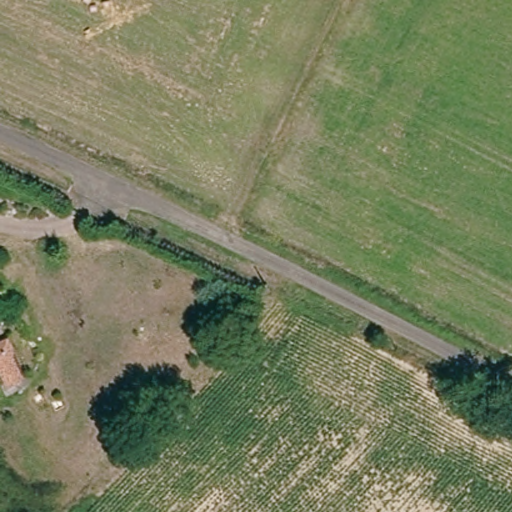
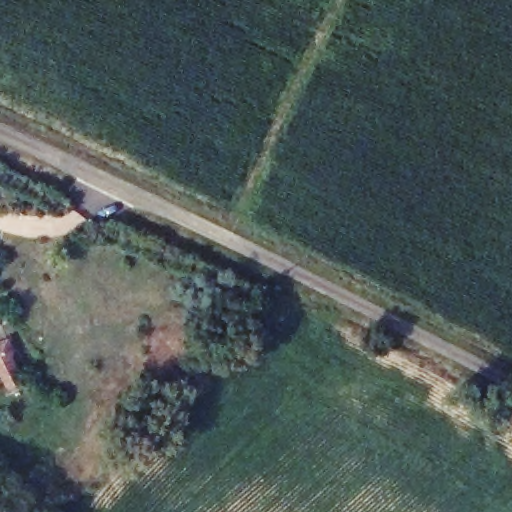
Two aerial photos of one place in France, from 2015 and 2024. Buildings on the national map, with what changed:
unchanged [(0,391),(0,348),(16,341),(32,377),(0,391)]

